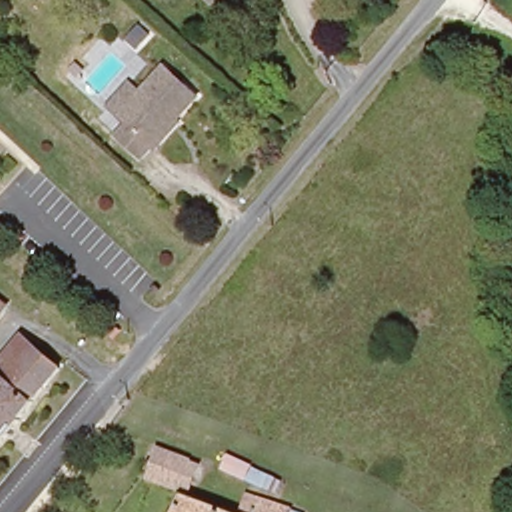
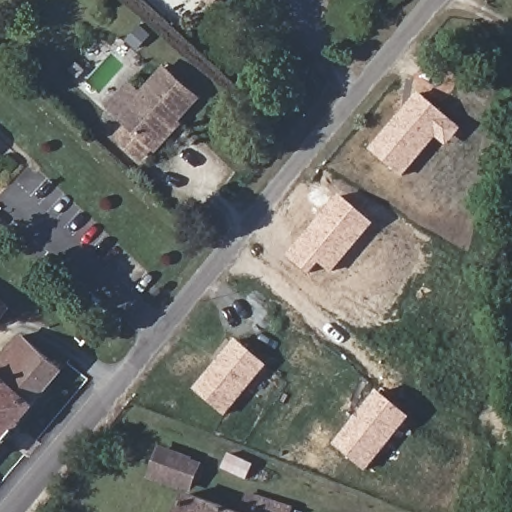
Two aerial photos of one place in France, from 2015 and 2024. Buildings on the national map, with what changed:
unchanged [(204,1),(204,0),(205,0),(204,1)]
unchanged [(180,108),(125,171),(98,148),(110,135),(102,128),(89,117),(110,92),(123,103),(145,78),(180,108)]
new [(401,177),(372,152),(419,96),(449,121),(401,177)]
new [(332,274),(321,265),(310,276),(287,256),(341,195),(375,225),(332,274)]
unchanged [(18,313),(8,326),(0,320),(0,298),(18,313)]
unchanged [(22,336),(37,349),(62,370),(24,414),(4,438),(0,443),(0,362),(22,336)]
new [(223,415),(194,390),(235,340),(265,365),(223,415)]
new [(365,472),(334,445),(378,392),(408,417),(365,472)]
unchanged [(196,488),(153,479),(159,448),(204,464),(196,488)]
unchanged [(231,457),(287,482),(282,494),(222,472),(231,457)]
unchanged [(230,512),(178,512),(185,497),(230,512)]
unchanged [(293,512),(242,512),(243,497),(293,512)]

